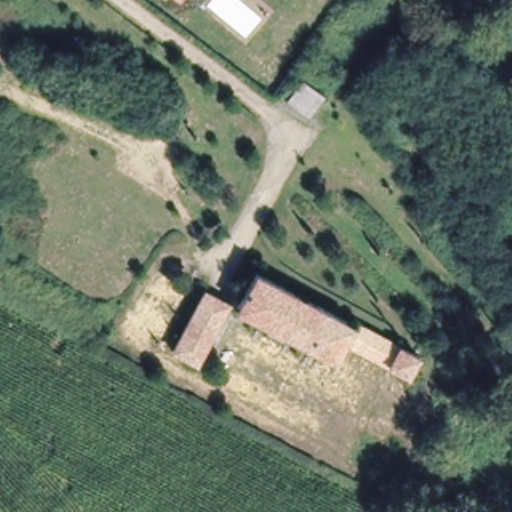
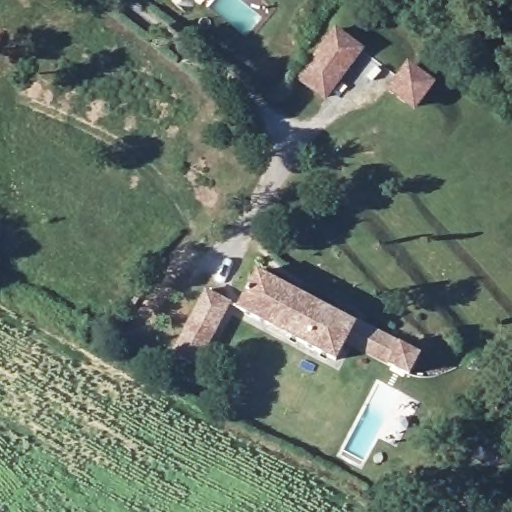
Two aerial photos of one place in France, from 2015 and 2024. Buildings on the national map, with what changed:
new [(362,50),(325,100),(296,81),(333,26),(362,50)]
new [(435,83),(415,111),(386,91),(406,62),(435,83)]
unchanged [(357,326),(338,363),(240,311),(259,274),(357,326)]
unchanged [(227,306),(195,367),(170,354),(202,293),(227,306)]
unchanged [(417,357),(406,377),(386,366),(397,346),(417,357)]

